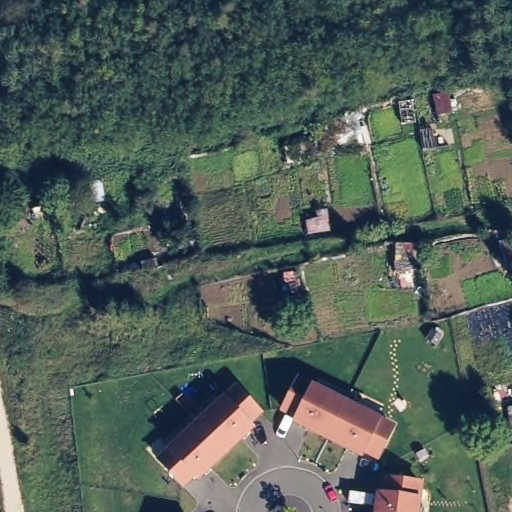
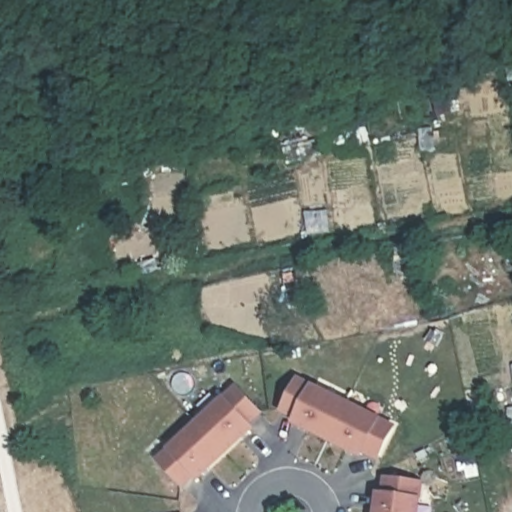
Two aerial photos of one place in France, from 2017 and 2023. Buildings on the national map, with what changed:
unchanged [(394,243),(416,243),(416,272),(394,272),(394,243)]
unchanged [(394,423),(377,459),(364,454),(363,458),(291,425),(293,420),(279,412),(298,376),(394,423)]
unchanged [(261,413),(251,424),(255,428),(198,481),(194,479),(183,487),(158,460),(236,385),(261,413)]
unchanged [(500,411),(512,410),(512,453),(500,453),(500,411)]
unchanged [(374,512),(376,492),(381,492),(383,476),(424,481),(420,512),(374,512)]

